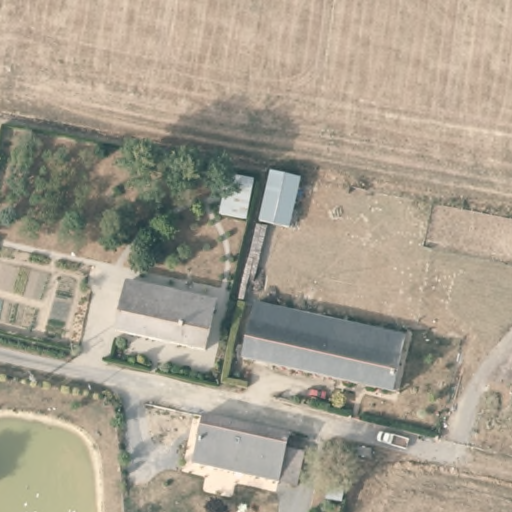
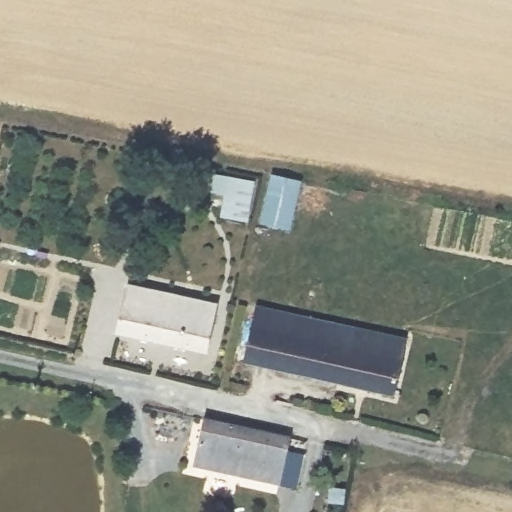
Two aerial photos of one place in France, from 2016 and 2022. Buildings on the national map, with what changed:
unchanged [(227,171),(254,175),(248,219),(233,217),(221,216),(227,171)]
unchanged [(299,182),(288,231),(260,224),(271,175),(299,182)]
unchanged [(219,298),(207,347),(117,326),(129,277),(219,298)]
unchanged [(391,395),(241,360),(252,302),(403,338),(391,395)]
unchanged [(286,431),(283,448),(303,452),(297,484),(194,462),(205,414),(286,431)]

